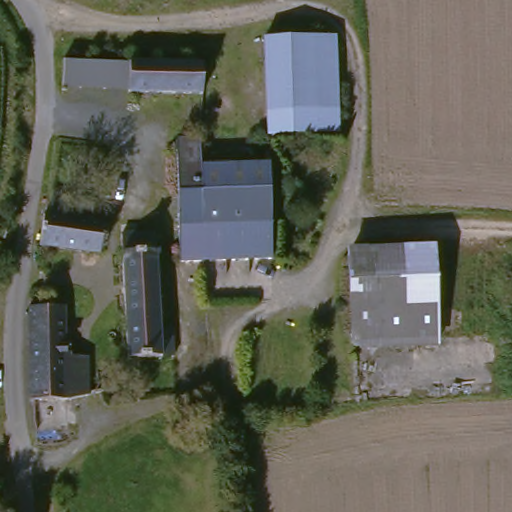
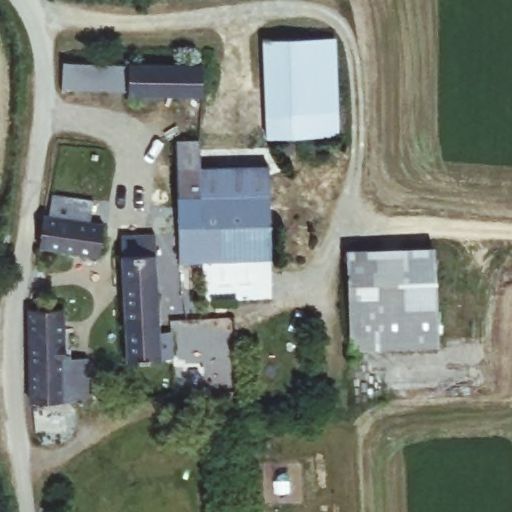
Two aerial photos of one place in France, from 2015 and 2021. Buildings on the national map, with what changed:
unchanged [(268,133),(266,36),(334,36),(338,134),(268,133)]
unchanged [(199,95),(129,93),(128,100),(59,98),(59,59),(199,62),(199,95)]
unchanged [(196,156),(196,140),(268,139),(269,202),(199,203),(196,156)]
unchanged [(176,140),(196,140),(196,156),(199,203),(176,203),(176,140)]
unchanged [(94,200),(91,221),(103,225),(98,256),(39,244),(50,191),(94,200)]
unchanged [(199,203),(269,202),(269,259),(204,259),(199,203)]
unchanged [(178,259),(176,203),(199,203),(204,259),(178,259)]
unchanged [(124,367),(119,243),(156,243),(161,341),(173,341),(173,366),(124,367)]
unchanged [(349,253),(436,254),(439,341),(353,339),(349,253)]
unchanged [(26,306),(64,307),(66,355),(91,355),(92,393),(65,397),(28,398),(26,306)]

